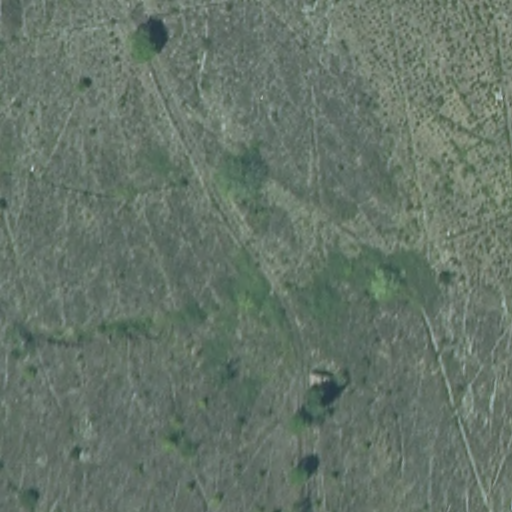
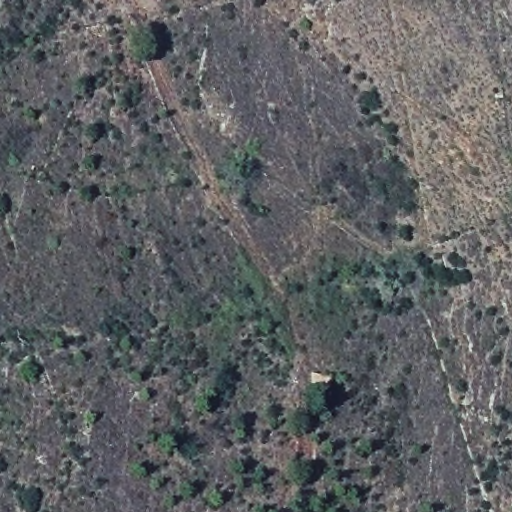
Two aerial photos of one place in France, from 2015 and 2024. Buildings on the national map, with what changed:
unchanged [(335,376),(334,397),(315,396),(317,374),(335,376)]

